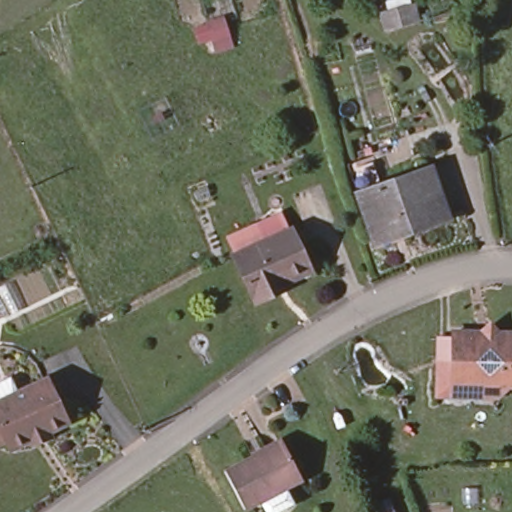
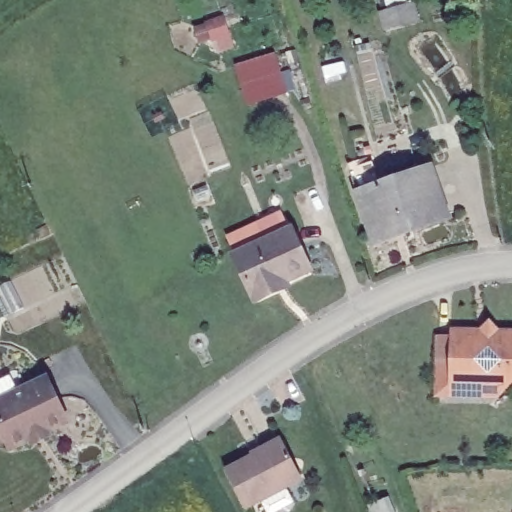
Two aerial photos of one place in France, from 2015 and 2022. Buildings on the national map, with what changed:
unchanged [(410,1),(416,15),(397,22),(385,26),(380,13),(392,8),(410,1)]
new [(275,52),(288,92),(246,105),(235,65),(275,52)]
unchanged [(451,219),(380,245),(381,247),(378,248),(359,196),(351,174),(372,166),(380,188),(432,168),(451,219)]
unchanged [(255,302),(235,256),(262,244),(255,226),(286,213),(293,231),(312,277),(287,288),(277,292),(255,302)]
unchanged [(489,324),(496,332),(512,333),(512,384),(451,381),(453,329),(481,331),(489,324)]
unchanged [(19,376),(23,384),(50,372),(74,424),(54,433),(57,439),(39,447),(36,441),(16,450),(12,442),(0,448),(0,384),(19,376)]
unchanged [(241,504),(221,465),(258,446),(259,449),(280,439),(298,474),(283,481),(292,497),(286,500),(267,510),(258,495),(241,504)]

